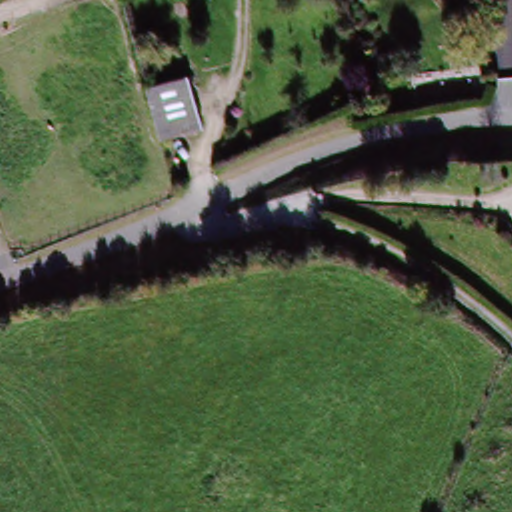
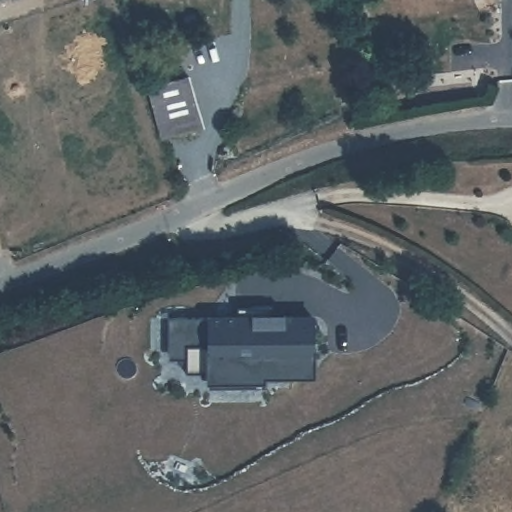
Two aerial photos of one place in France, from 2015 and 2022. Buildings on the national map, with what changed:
unchanged [(160,136),(149,85),(190,75),(202,126),(160,136)]
new [(252,325),(252,315),(272,315),(272,325),(313,326),(312,382),(265,382),(265,391),(208,391),(208,381),(185,381),(185,361),(168,360),(168,324),(252,325)]

